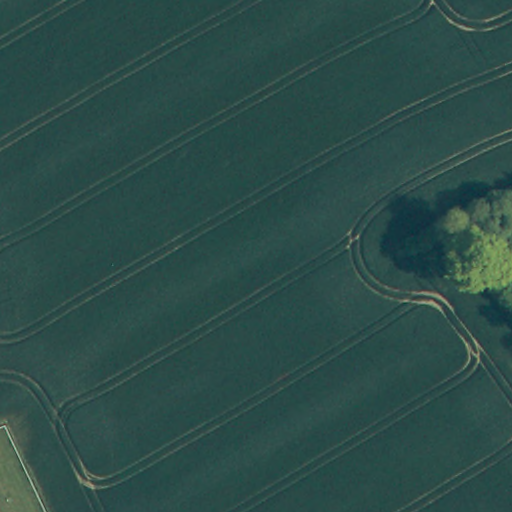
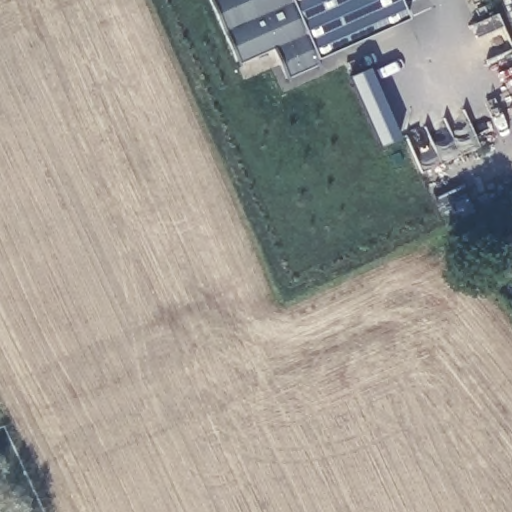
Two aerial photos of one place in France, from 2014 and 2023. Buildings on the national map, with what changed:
new [(407,19),(316,59),(315,59),(317,65),(287,78),(276,48),(239,62),(211,0),(399,0),(407,19)]
new [(381,146),(351,76),(370,68),(400,137),(381,146)]

